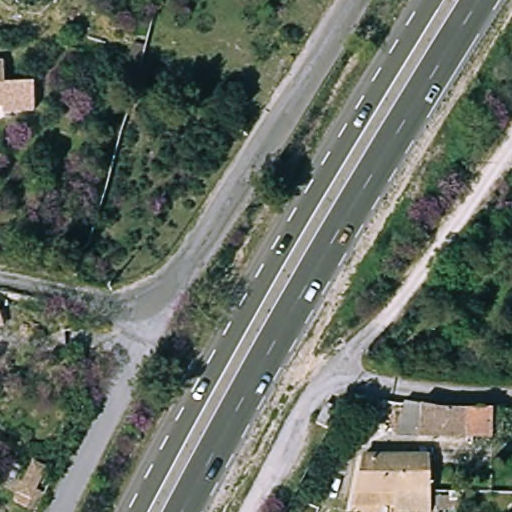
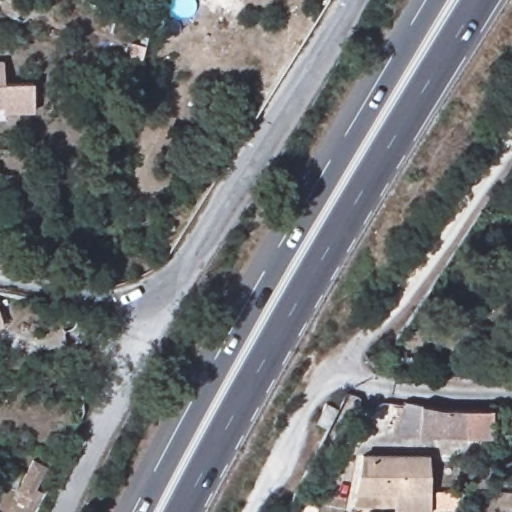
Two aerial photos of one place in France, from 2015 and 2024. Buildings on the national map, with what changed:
unchanged [(5,60),(7,84),(35,82),(36,112),(5,114),(5,108),(0,108),(0,60),(5,60)]
unchanged [(1,326),(0,326),(0,320),(1,326)]
unchanged [(312,420),(322,400),(330,404),(335,406),(325,427),(317,422),(312,420)]
unchanged [(417,440),(387,438),(396,403),(404,403),(412,403),(417,402),(440,404),(460,405),(476,407),(485,408),(489,407),(501,408),(500,422),(495,421),(490,420),(488,441),(417,440)]
unchanged [(351,492),(352,452),(425,454),(423,495),(423,512),(385,512),(385,508),(350,507),(351,492)]
unchanged [(25,499),(16,495),(32,460),(53,470),(41,493),(48,496),(41,512),(35,512),(21,505),(25,499)]

